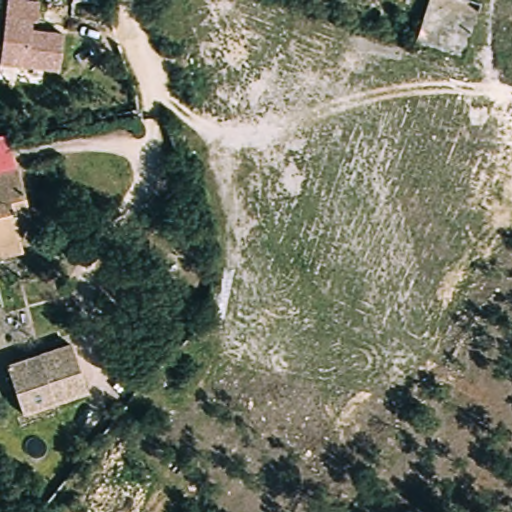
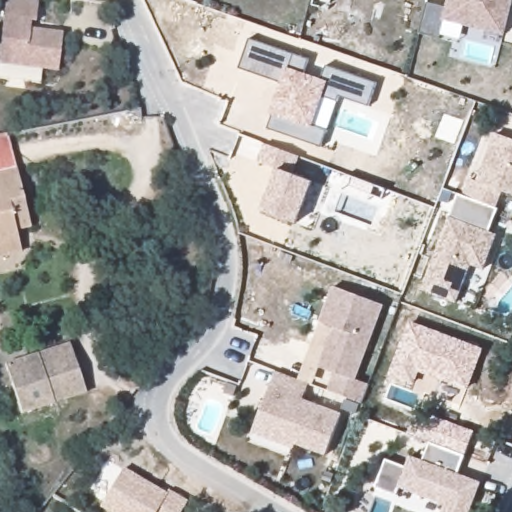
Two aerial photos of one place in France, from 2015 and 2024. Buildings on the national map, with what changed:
unchanged [(33,27),(66,30),(64,66),(4,62),(5,54),(8,0),(40,0),(38,19),(34,19),(33,27)]
new [(426,6),(444,10),(447,0),(512,0),(512,4),(503,38),(445,22),(440,40),(418,35),(426,6)]
new [(310,60),(305,72),(322,79),(327,65),(376,83),(368,106),(340,97),(329,129),(322,147),(270,130),(275,114),(270,112),(281,84),(240,69),(250,40),(310,60)]
new [(492,201),(462,190),(468,173),(476,176),(494,128),(512,134),(512,189),(498,185),(492,201)]
new [(264,138),(297,150),(290,168),(311,175),(294,217),(261,205),(277,164),(256,156),(264,138)]
unchanged [(15,145),(24,193),(12,195),(15,215),(0,218),(0,148),(15,145)]
new [(460,195),(462,190),(492,201),(498,185),(506,187),(499,209),(490,231),(498,235),(485,270),(473,266),(458,303),(422,289),(450,217),(460,195)]
unchanged [(15,215),(12,195),(24,193),(31,234),(19,239),(10,254),(0,256),(0,218),(15,215)]
new [(335,324),(320,319),(333,283),(383,302),(355,376),(370,382),(362,400),(327,387),(335,370),(319,364),(335,324)]
new [(484,349),(468,390),(421,372),(415,385),(389,375),(411,322),(484,349)]
unchanged [(73,350),(82,391),(20,404),(11,362),(73,350)]
new [(267,395),(271,385),(277,368),(311,380),(305,397),(343,411),(328,452),(297,440),(295,445),(273,437),(254,429),(261,410),(267,395)]
new [(426,428),(432,415),(476,431),(468,454),(463,452),(428,438),(427,441),(408,435),(412,424),(426,428)]
new [(465,512),(439,512),(443,501),(397,483),(395,492),(373,484),(384,455),(405,463),(408,452),(421,457),(428,438),(463,452),(456,471),(478,480),(475,486),(473,491),(465,512)]
new [(166,493),(167,490),(187,502),(182,512),(104,512),(100,509),(123,470),(166,493)]

